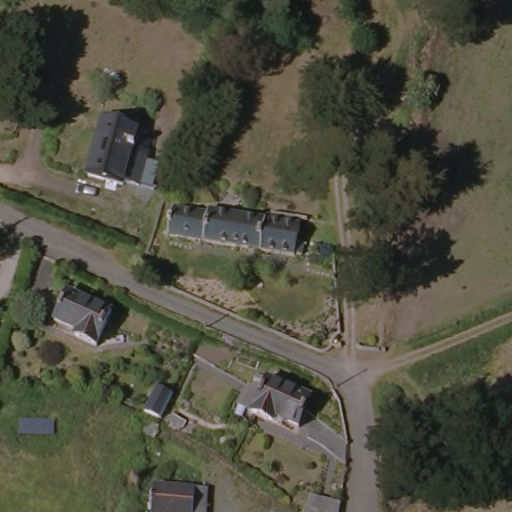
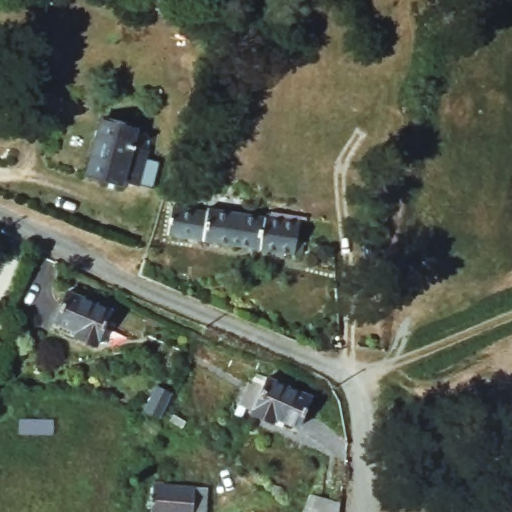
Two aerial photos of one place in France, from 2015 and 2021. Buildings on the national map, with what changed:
unchanged [(135,127),(132,142),(147,147),(139,184),(123,180),(122,184),(85,173),(100,118),(135,127)]
unchanged [(160,242),(161,229),(167,229),(171,204),(224,210),(260,214),(260,208),(295,210),(295,233),(301,234),(298,253),(160,242)]
unchanged [(68,290),(113,309),(97,346),(52,326),(68,290)]
unchanged [(305,425),(302,424),(298,432),(257,415),(239,407),(249,385),(253,387),(259,374),(271,378),(315,396),(305,425)]
unchanged [(20,435),(22,419),(54,419),(52,436),(20,435)]
unchanged [(199,484),(196,512),(154,512),(157,480),(199,484)]
unchanged [(340,508),(340,512),(309,512),(313,491),(340,508)]

